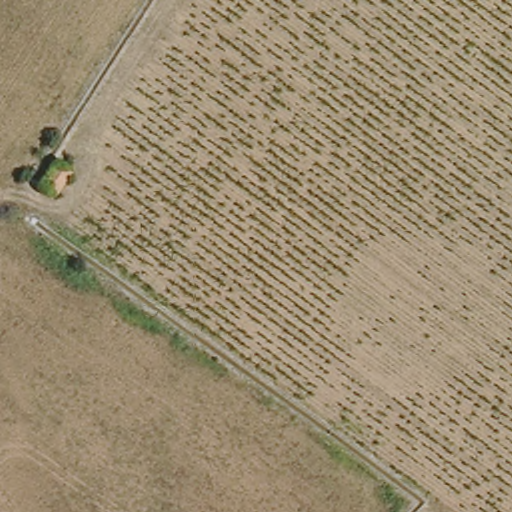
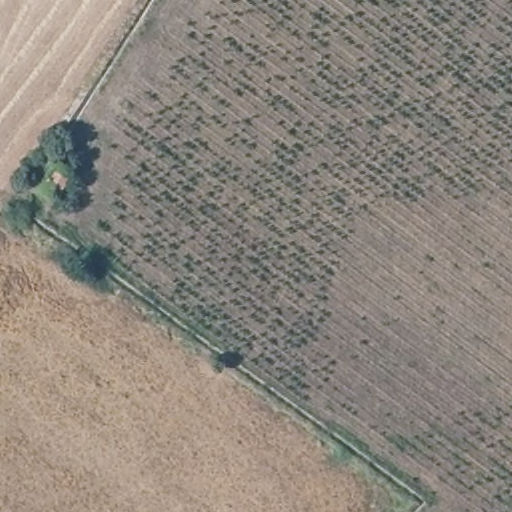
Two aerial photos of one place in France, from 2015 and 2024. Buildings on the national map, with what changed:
unchanged [(71,172),(54,200),(35,190),(52,163),(71,172)]

